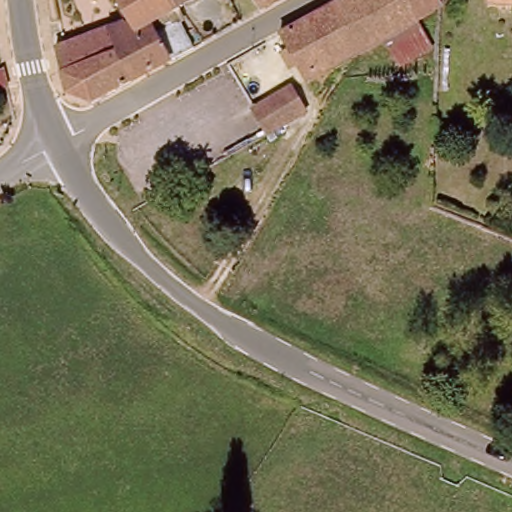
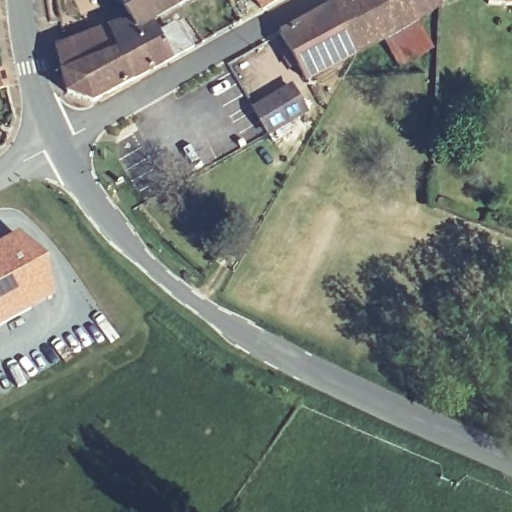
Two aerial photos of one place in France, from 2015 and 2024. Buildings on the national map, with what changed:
unchanged [(132,20),(120,0),(168,0),(173,10),(142,29),(147,37),(180,21),(197,46),(135,80),(118,52),(62,69),(56,44),(132,20)]
unchanged [(168,0),(192,0),(180,6),(173,10),(168,0)]
unchanged [(263,0),(278,0),(267,6),(263,0)]
unchanged [(444,0),(446,4),(418,20),(385,38),(361,51),(333,5),(343,0),(444,0)]
unchanged [(490,0),(512,0),(512,6),(490,6),(490,0)]
unchanged [(285,51),(293,48),(285,32),(333,5),(361,51),(342,63),(310,80),(302,63),(292,67),(285,51)]
unchanged [(418,20),(433,50),(402,68),(385,38),(418,20)]
unchanged [(118,52),(135,80),(92,103),(67,96),(62,69),(118,52)]
unchanged [(290,85),(304,111),(270,130),(255,103),(290,85)]
new [(18,231),(35,250),(46,261),(55,296),(0,327),(0,241),(18,231)]

